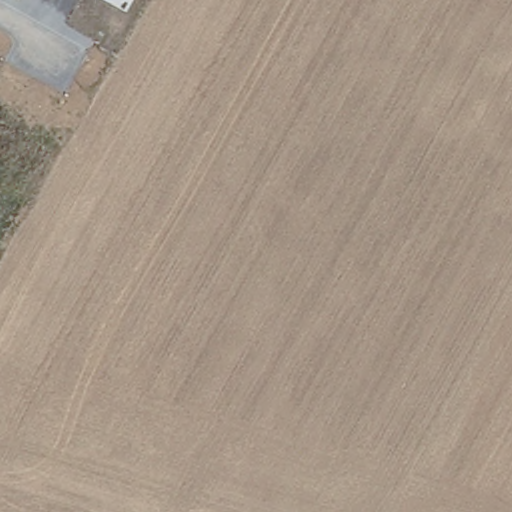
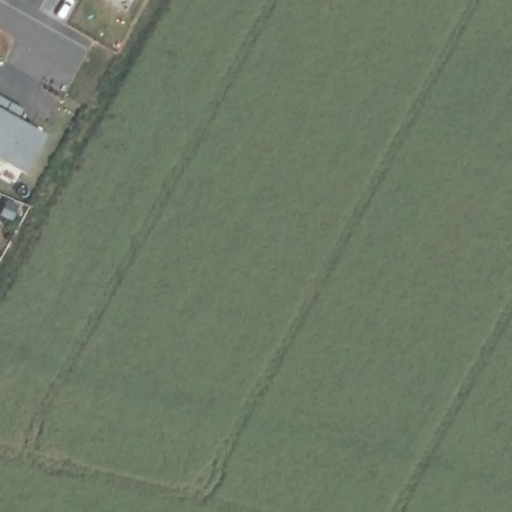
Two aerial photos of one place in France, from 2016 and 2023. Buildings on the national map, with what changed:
new [(48,121),(23,164),(0,151),(0,95),(48,121)]

